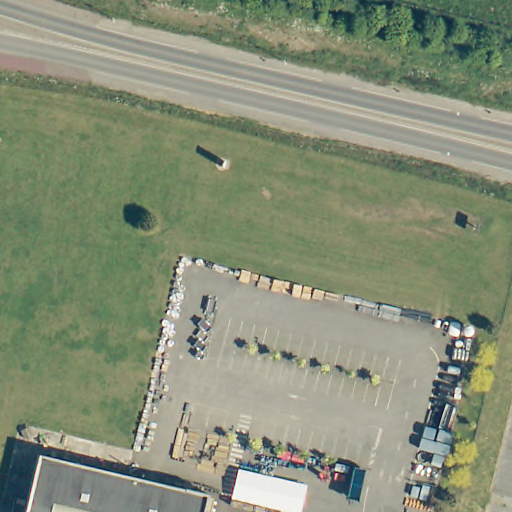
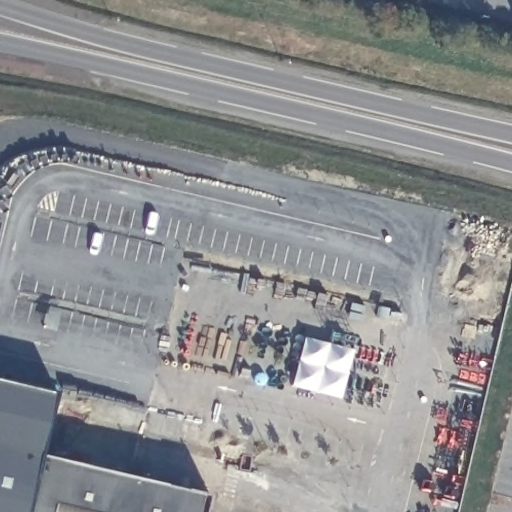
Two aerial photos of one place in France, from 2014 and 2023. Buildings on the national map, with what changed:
new [(57,385),(41,455),(27,512),(0,512),(0,371),(57,385)]
unchanged [(211,495),(207,512),(27,512),(41,455),(211,495)]

